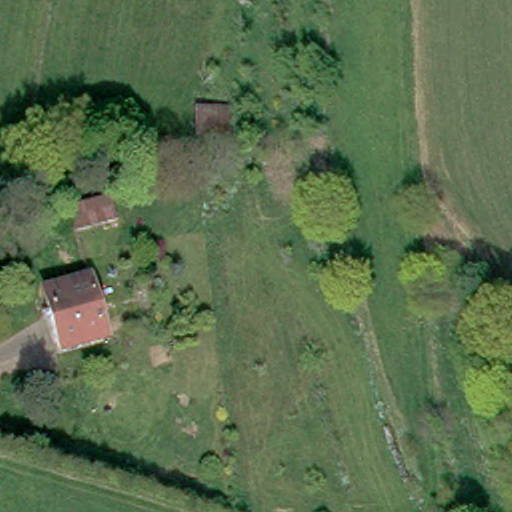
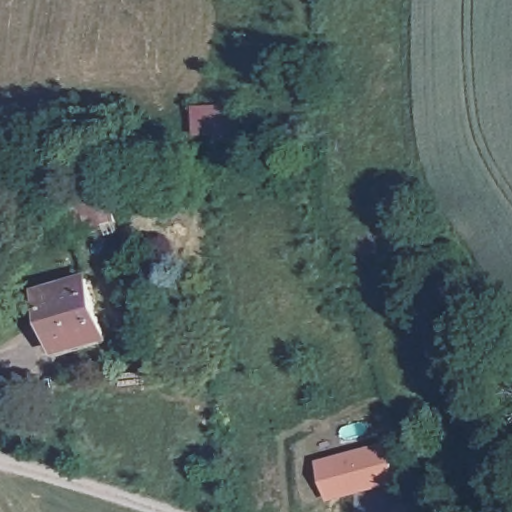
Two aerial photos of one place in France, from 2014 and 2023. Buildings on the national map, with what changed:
unchanged [(195,100),(228,96),(228,126),(196,130),(195,100)]
unchanged [(62,208),(104,195),(111,219),(71,233),(62,208)]
unchanged [(41,282),(85,269),(102,326),(60,340),(41,282)]
new [(386,442),(397,482),(330,501),(319,460),(386,442)]

